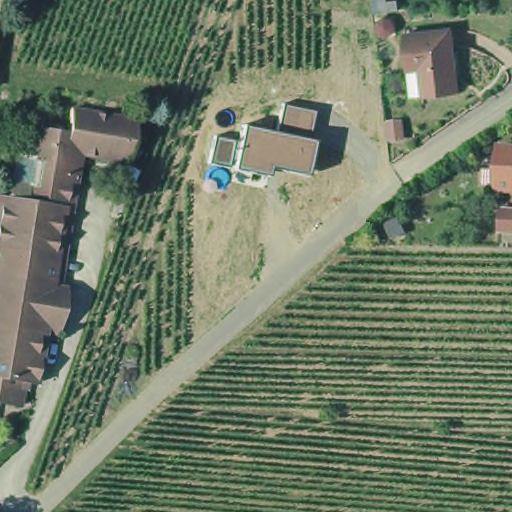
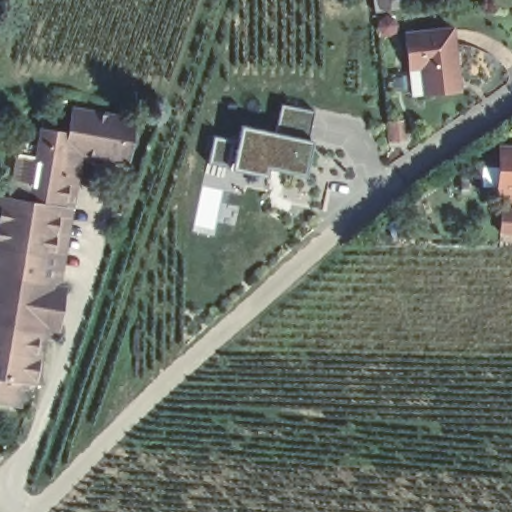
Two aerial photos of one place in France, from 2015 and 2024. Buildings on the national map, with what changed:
unchanged [(405,30),(406,29),(453,24),(460,86),(425,90),(415,91),(412,92),(409,65),(405,30)]
unchanged [(65,149),(70,130),(71,126),(76,105),(140,116),(132,159),(70,150),(65,149)]
unchanged [(243,127),(277,134),(282,106),(312,114),(308,142),(310,143),(303,175),(267,167),(265,176),(233,169),(243,127)]
unchanged [(0,192),(12,194),(20,155),(22,138),(41,141),(45,125),(70,130),(65,149),(70,150),(70,152),(66,172),(72,174),(66,204),(70,205),(56,284),(66,287),(59,329),(48,327),(38,381),(25,379),(21,404),(0,401),(0,192)]
unchanged [(208,163),(215,138),(232,141),(226,167),(208,163)]
unchanged [(498,181),(498,171),(500,139),(512,139),(512,182),(498,181)]
unchanged [(512,201),(512,223),(500,223),(500,200),(512,201)]

